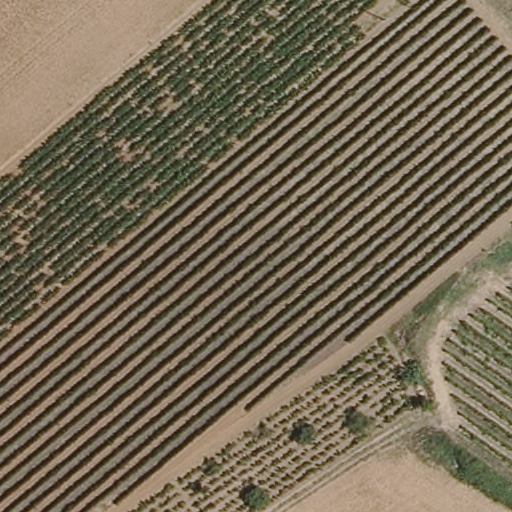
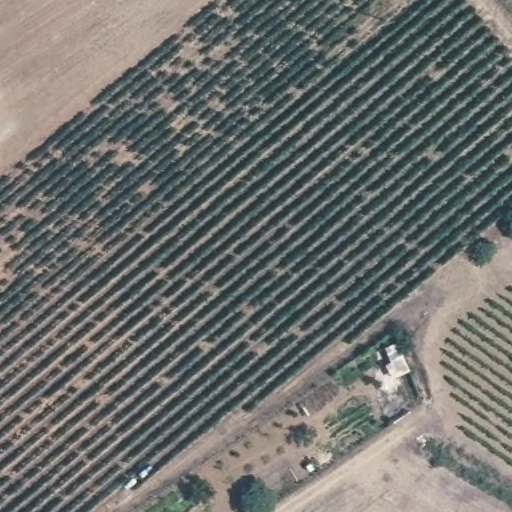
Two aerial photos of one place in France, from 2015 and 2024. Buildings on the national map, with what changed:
[]

